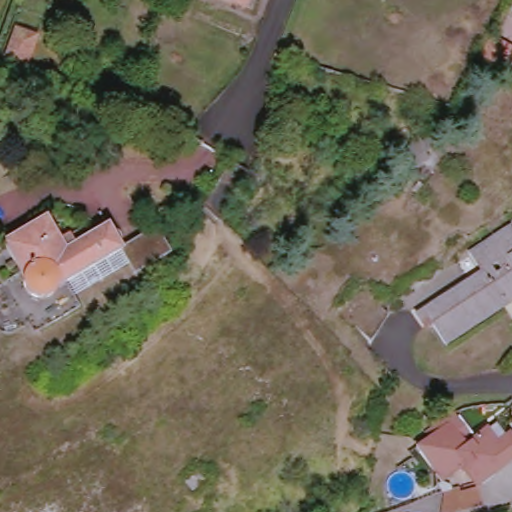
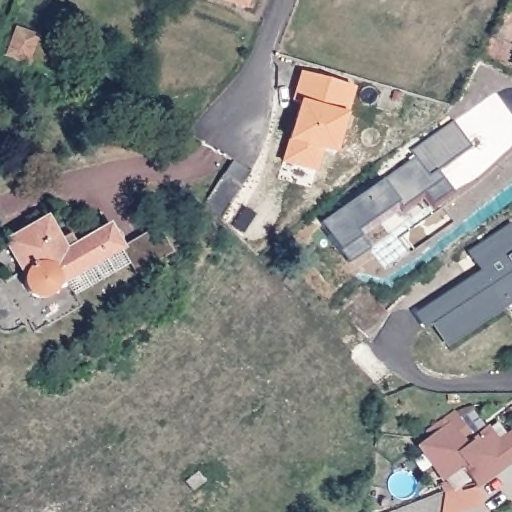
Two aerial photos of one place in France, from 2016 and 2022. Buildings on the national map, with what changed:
unchanged [(250,5),(236,0),(253,0),(250,5)]
unchanged [(17,29),(37,36),(27,61),(7,55),(17,29)]
unchanged [(501,70),(479,57),(490,35),(512,46),(512,48),(501,70)]
new [(354,88),(334,155),(322,150),(315,171),(284,161),(292,131),(297,133),(300,122),(295,121),(300,104),(293,101),(302,73),(354,88)]
new [(437,171),(452,191),(432,205),(424,192),(402,208),(398,203),(357,231),(370,249),(350,262),(322,222),(417,156),(412,150),(453,121),(470,147),(437,171)]
unchanged [(50,217),(69,246),(112,225),(129,251),(72,283),(64,285),(58,296),(45,300),(32,297),(27,287),(27,276),(7,240),(50,217)]
unchanged [(487,275),(475,256),(512,232),(512,293),(504,298),(509,307),(449,346),(434,322),(428,313),(487,275)]
unchanged [(72,283),(129,251),(159,234),(172,257),(141,275),(135,264),(79,295),(72,283)]
unchanged [(441,431),(437,426),(454,414),(474,441),(497,425),(507,439),(512,436),(512,461),(488,478),(479,465),(475,467),(470,460),(464,465),(462,464),(450,473),(430,446),(427,442),(438,434),(441,431)]
unchanged [(492,500),(451,507),(455,486),(468,485),(470,488),(489,483),(492,500)]

